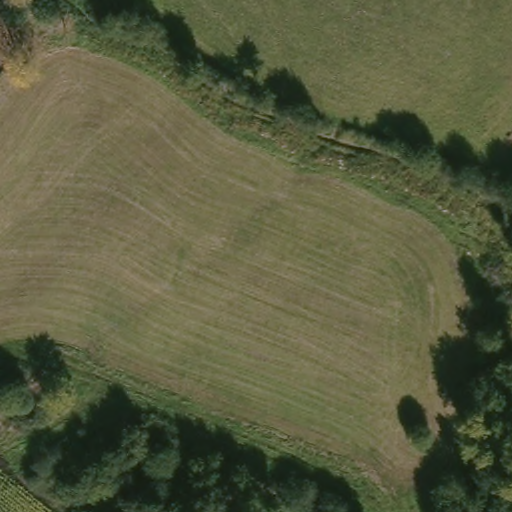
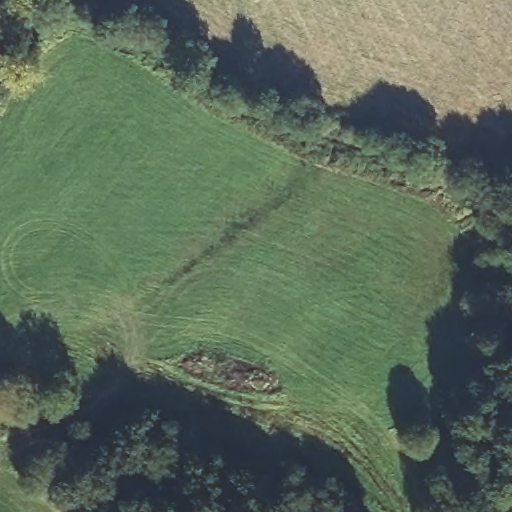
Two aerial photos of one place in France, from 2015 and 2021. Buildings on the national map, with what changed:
[]

